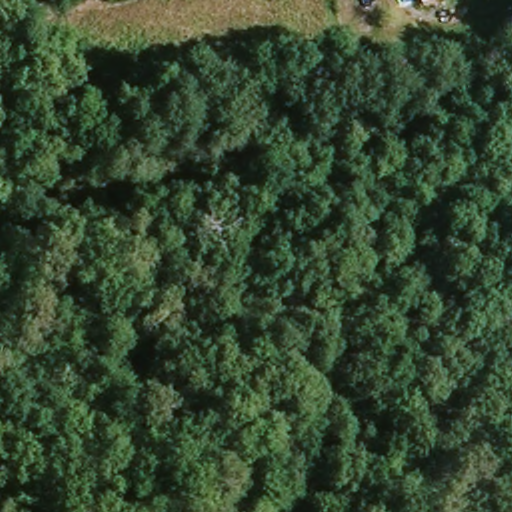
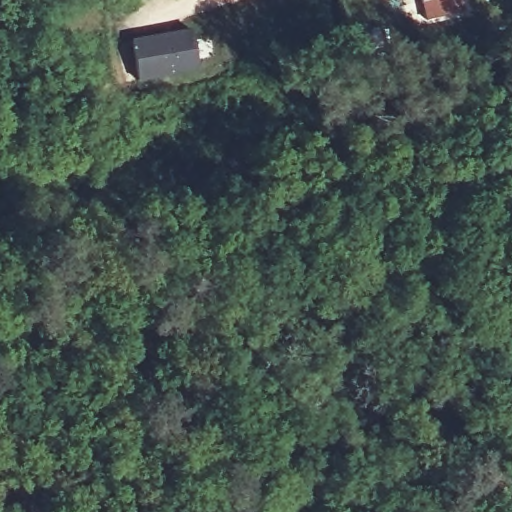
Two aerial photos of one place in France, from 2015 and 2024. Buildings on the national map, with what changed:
unchanged [(420,4),(419,0),(436,0),(420,4)]
new [(199,72),(139,83),(132,40),(191,30),(199,72)]

